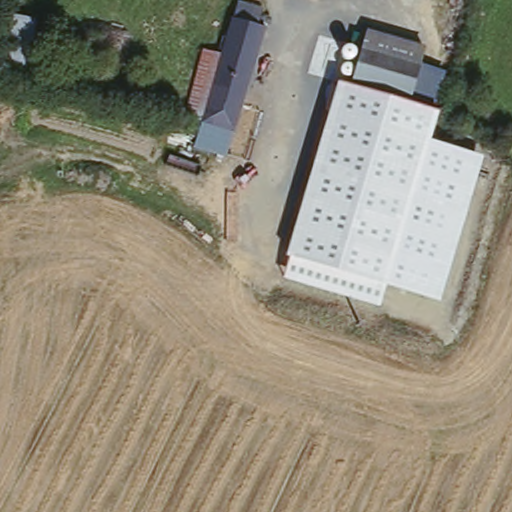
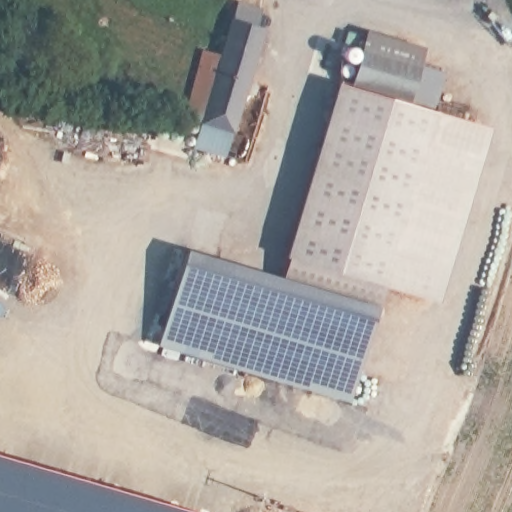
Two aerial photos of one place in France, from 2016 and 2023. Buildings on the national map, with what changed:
unchanged [(194,154),(203,127),(184,122),(203,54),(221,59),(238,7),(265,14),(259,30),(268,32),(228,164),(194,154)]
unchanged [(424,47),(420,63),(443,70),(433,107),(351,82),(366,29),(424,47)]
unchanged [(439,113),(491,122),(483,157),(440,302),(385,285),(379,307),(284,279),(290,257),(286,256),(338,82),(439,113)]
new [(385,311),(353,404),(162,347),(194,252),(284,279),(379,307),(385,311)]

